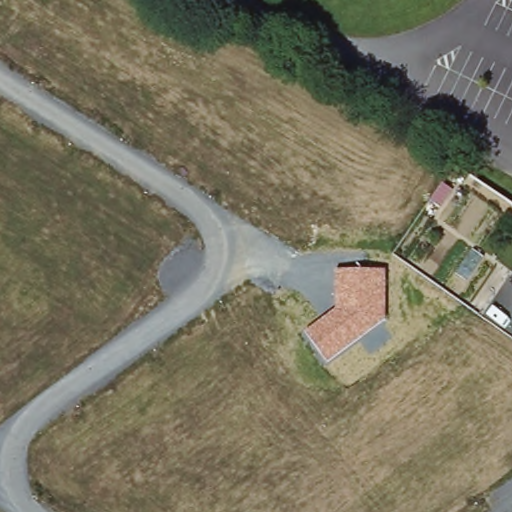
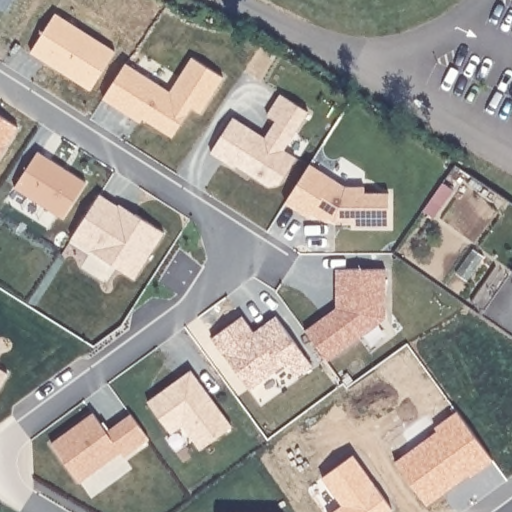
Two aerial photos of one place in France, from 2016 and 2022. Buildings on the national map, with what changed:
new [(5,10),(0,7),(0,0),(11,0),(5,10)]
new [(200,112),(191,107),(172,137),(144,119),(140,122),(103,99),(126,63),(170,91),(192,58),(224,77),(200,112)]
new [(237,166),(235,169),(211,153),(234,117),(265,137),(276,120),(266,114),(280,93),(309,112),(284,149),(296,157),(280,184),(268,187),(237,166)]
new [(15,188),(37,151),(86,183),(62,219),(15,188)]
new [(355,226),(355,222),(335,222),(328,219),(327,222),(312,214),(309,219),(285,203),(311,164),(345,187),(365,187),(365,194),(390,192),(388,227),(355,226)]
new [(72,239),(100,195),(119,207),(120,205),(164,234),(134,280),(72,239)]
unchanged [(385,270),(385,321),(327,363),(305,331),(336,306),(336,272),(385,270)]
new [(296,377),(286,365),(251,391),(213,338),(242,317),(254,333),(277,317),(311,366),(296,377)]
new [(7,375),(0,387),(0,371),(7,375)]
new [(199,448),(182,426),(171,433),(148,402),(190,371),(231,426),(199,448)]
new [(123,457),(120,453),(80,482),(51,443),(92,413),(106,432),(130,414),(147,438),(123,457)]

